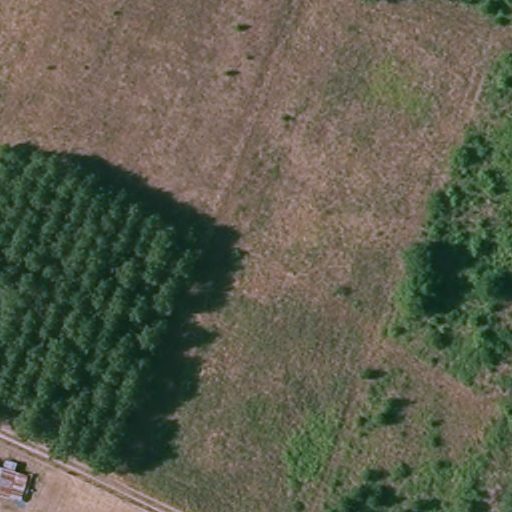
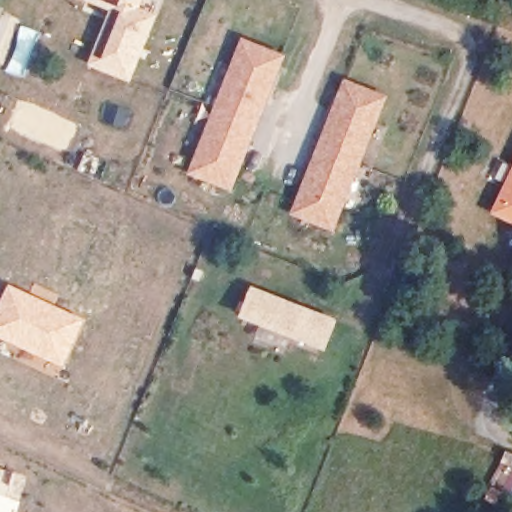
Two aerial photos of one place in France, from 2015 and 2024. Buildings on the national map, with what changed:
new [(139,7),(157,15),(130,82),(87,65),(109,10),(82,0),(142,0),(139,7)]
new [(285,55),(231,191),(187,174),(241,37),(285,55)]
new [(387,97),(334,231),(290,214),(344,78),(387,97)]
new [(489,213),(512,167),(512,224),(489,213)]
new [(29,293),(34,282),(59,293),(54,305),(84,318),(61,367),(0,339),(0,297),(7,282),(29,293)]
new [(337,320),(324,351),(238,318),(252,286),(337,320)]
unchanged [(0,476),(0,472),(1,472),(0,476)]

